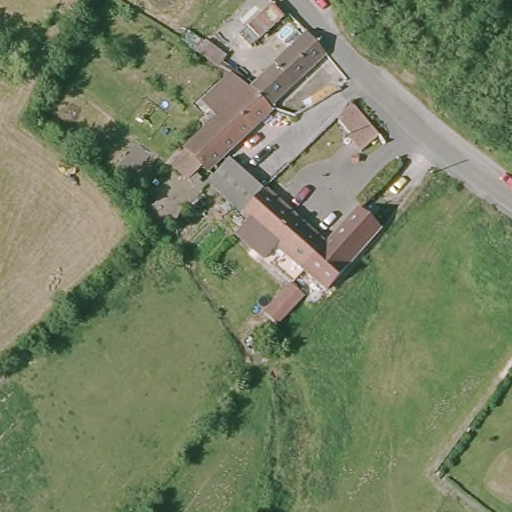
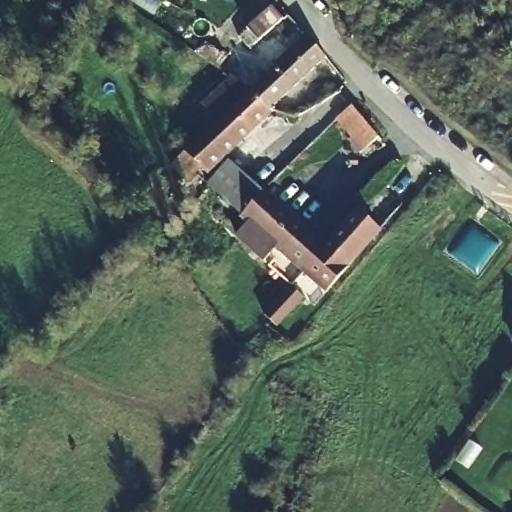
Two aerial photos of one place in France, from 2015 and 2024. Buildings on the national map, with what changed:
unchanged [(267,1),(282,17),(257,40),(242,23),(267,1)]
unchanged [(269,103),(267,106),(247,92),(245,89),(300,33),(317,54),(269,103)]
unchanged [(220,115),(205,100),(229,76),(245,89),(247,92),(267,106),(202,170),(197,166),(184,178),(170,165),(220,115)]
unchanged [(349,100),(377,132),(359,148),(347,134),(350,132),(334,114),(349,100)]
unchanged [(222,160),(256,189),(237,210),(203,182),(222,160)]
unchanged [(302,267),(267,237),(257,248),(237,231),(248,220),(237,210),(256,189),(320,245),(337,224),(355,203),(377,222),(326,287),(314,276),(311,274),(302,267)]
unchanged [(293,285),(304,295),(277,326),(265,315),(293,285)]

